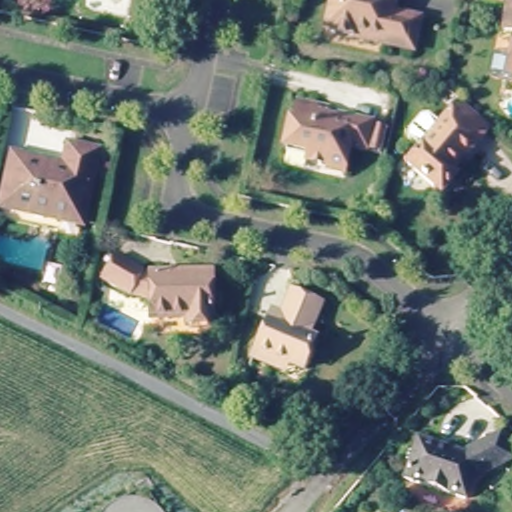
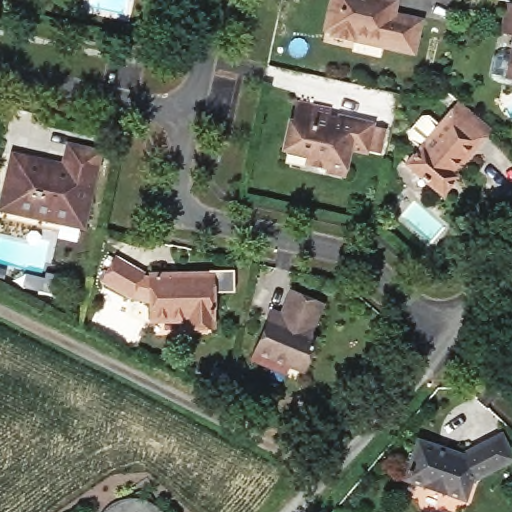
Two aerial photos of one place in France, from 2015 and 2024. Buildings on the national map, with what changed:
unchanged [(339,34),(340,30),(329,27),(336,0),(400,0),(398,11),(427,18),(417,55),(386,47),(360,40),(339,34)]
unchanged [(503,32),(510,4),(512,5),(512,35),(503,32)]
unchanged [(505,76),(512,49),(512,78),(505,76)]
unchanged [(458,171),(459,172),(442,193),(407,164),(421,146),(411,138),(410,132),(423,116),(429,116),(439,125),(459,101),(492,129),(458,171)]
unchanged [(290,142),(299,102),(335,110),(333,118),(342,120),(374,127),(368,152),(357,149),(351,174),(330,169),(331,164),(310,159),(311,157),(287,152),(290,142)]
unchanged [(65,226),(1,211),(14,155),(36,160),(67,168),(72,148),(101,155),(88,214),(84,230),(65,226)]
unchanged [(149,281),(159,283),(161,276),(221,276),(221,328),(191,328),(191,324),(155,323),(156,302),(141,296),(138,301),(108,280),(124,256),(150,273),(149,281)]
unchanged [(251,360),(255,351),(273,312),(284,317),(294,295),(322,309),(309,338),(318,342),(303,374),(287,366),(283,375),(251,360)]
unchanged [(463,506),(398,487),(415,446),(457,461),(503,441),(512,463),(512,469),(484,479),(469,487),(463,506)]

